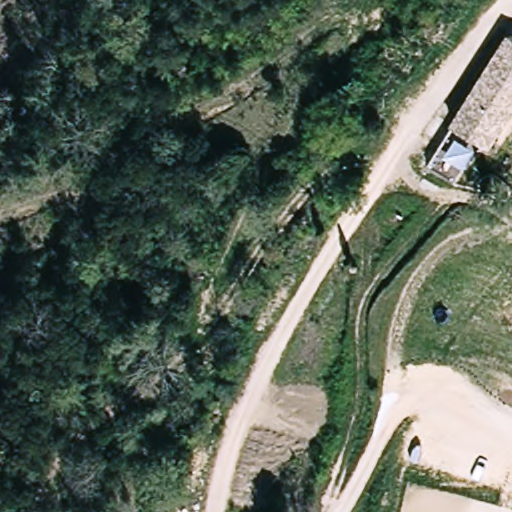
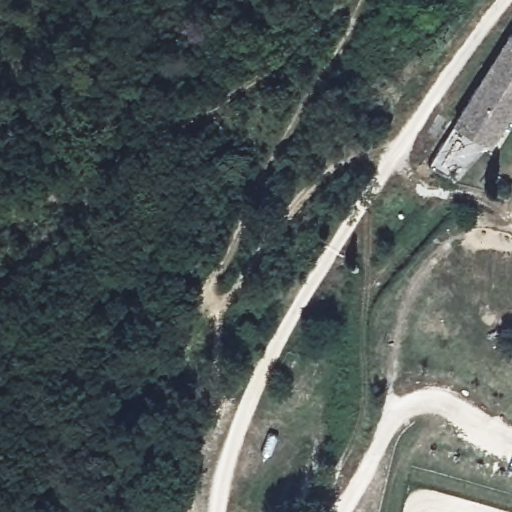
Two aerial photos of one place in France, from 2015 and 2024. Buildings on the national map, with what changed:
unchanged [(491,146),(451,126),(483,75),(507,36),(512,39),(512,114),(491,146)]

